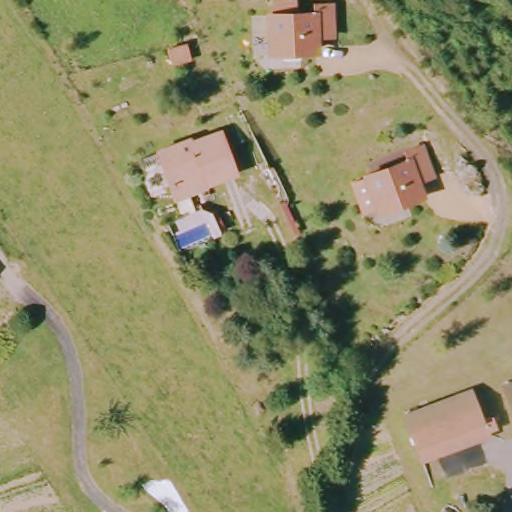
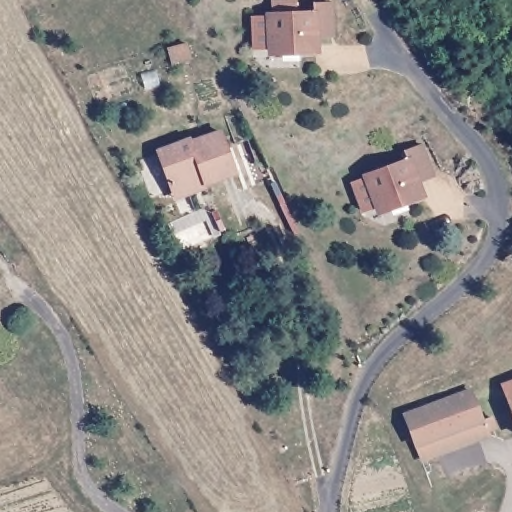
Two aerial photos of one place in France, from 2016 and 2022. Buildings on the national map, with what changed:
unchanged [(303,42),(303,40),(285,39),(286,44),(274,45),(272,9),(318,7),(318,0),(334,0),(336,29),(319,29),(319,42),(303,42)]
unchanged [(182,52),(163,58),(159,45),(178,39),(182,52)]
unchanged [(435,159),(420,164),(426,177),(410,184),(409,181),(392,187),(394,193),(384,198),(370,166),(409,146),(404,137),(420,130),(435,159)]
unchanged [(178,201),(174,192),(160,154),(191,141),(193,146),(223,134),(236,174),(206,186),(208,190),(178,201)]
unchanged [(501,390),(512,385),(512,416),(501,390)]
unchanged [(483,419),(419,447),(404,418),(468,390),(483,419)]

